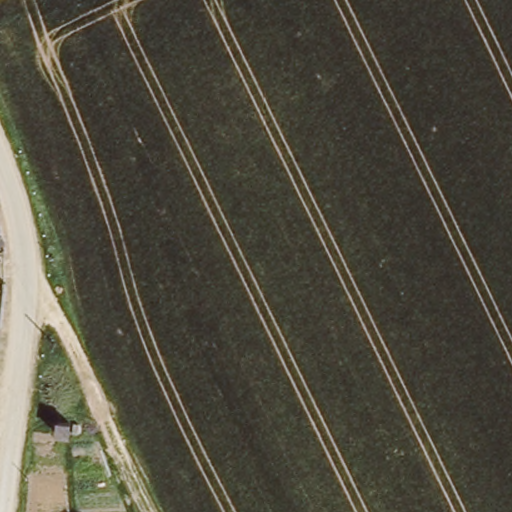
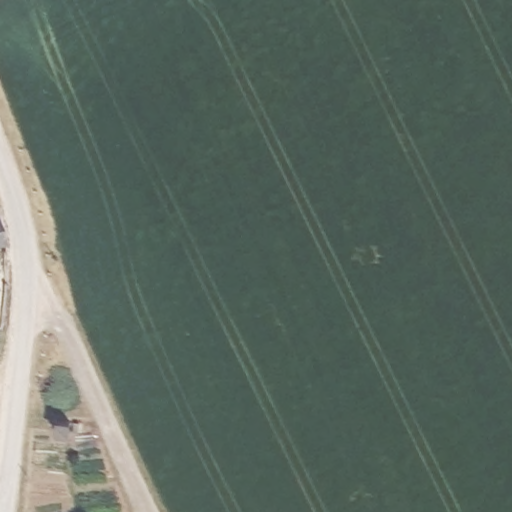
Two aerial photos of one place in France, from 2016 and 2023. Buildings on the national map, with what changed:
unchanged [(11,234),(0,238),(0,203),(11,234)]

